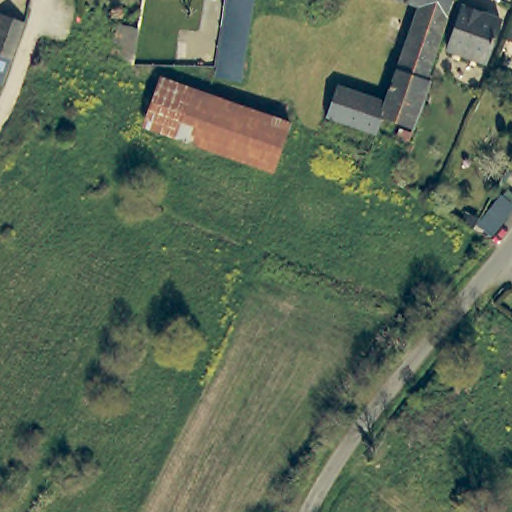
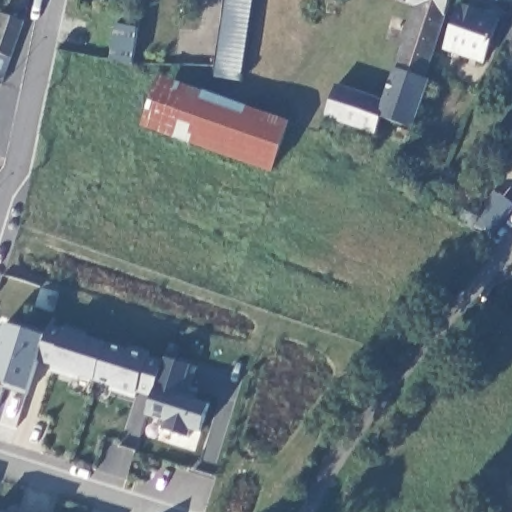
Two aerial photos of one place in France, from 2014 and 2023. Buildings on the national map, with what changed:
unchanged [(406,133),(376,121),(370,137),(320,119),(331,89),(378,105),(411,10),(383,0),(449,0),(419,82),(424,84),(406,133)]
unchanged [(489,65),(452,51),(467,10),(505,23),(489,65)]
unchanged [(18,20),(0,74),(0,14),(18,20)]
unchanged [(132,63),(110,59),(115,23),(137,26),(132,63)]
unchanged [(148,129),(165,82),(196,93),(180,140),(148,129)]
unchanged [(275,173),(180,140),(196,93),(292,126),(275,173)]
new [(187,396),(209,404),(201,434),(190,430),(188,438),(162,431),(164,422),(146,415),(152,396),(139,393),(136,398),(51,370),(53,364),(39,359),(28,392),(0,384),(0,331),(2,322),(46,336),(49,324),(164,361),(167,355),(196,365),(187,396)]
new [(24,512),(17,512),(17,509),(24,512)]
new [(5,512),(0,512),(0,510),(5,512)]

